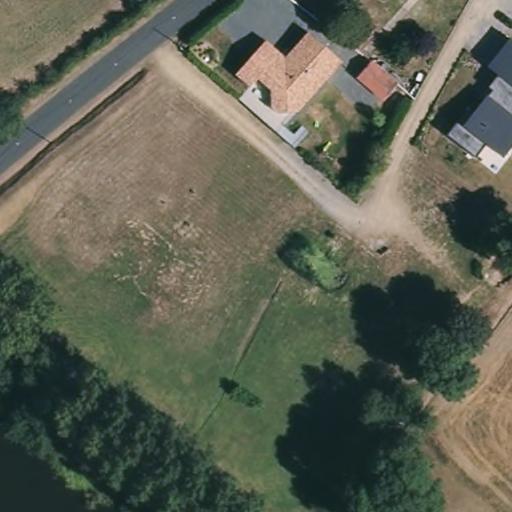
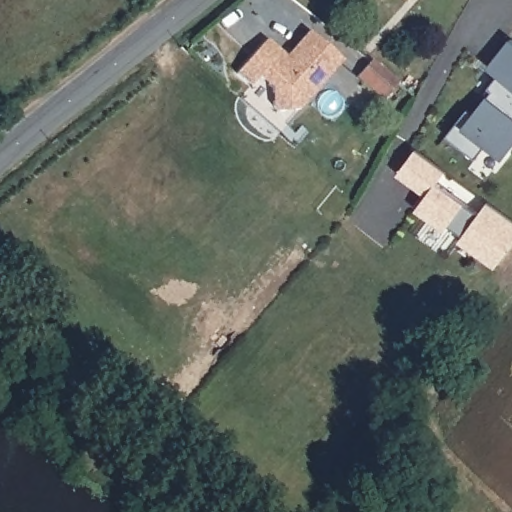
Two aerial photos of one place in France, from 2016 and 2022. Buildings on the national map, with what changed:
unchanged [(274,115),(267,109),(270,92),(254,80),(248,87),(232,75),(260,40),(283,59),(307,32),(338,64),(296,111),(274,115)]
unchanged [(512,146),(502,159),(483,146),(474,158),(447,135),(454,124),(461,127),(492,91),(488,89),(498,76),(487,67),(509,40),(512,42),(512,146)]
unchanged [(366,62),(392,82),(379,95),(355,75),(366,62)]
new [(445,172),(436,184),(478,215),(487,203),(512,222),(512,245),(494,269),(474,255),(478,249),(461,237),(447,226),(443,232),(418,213),(425,203),(422,201),(425,196),(396,175),(415,150),(445,172)]

